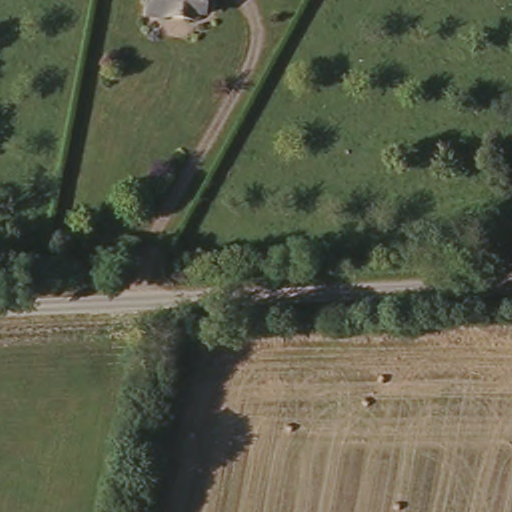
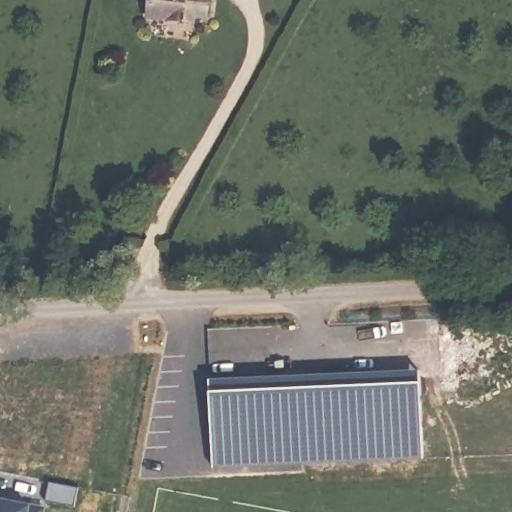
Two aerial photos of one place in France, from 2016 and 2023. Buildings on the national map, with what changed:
unchanged [(205,20),(189,15),(186,21),(144,15),(146,0),(207,0),(205,20)]
new [(206,388),(415,380),(417,456),(209,466),(206,388)]
new [(49,482),(77,488),(74,507),(45,502),(49,482)]
new [(41,512),(0,512),(0,501),(42,508),(41,512)]

